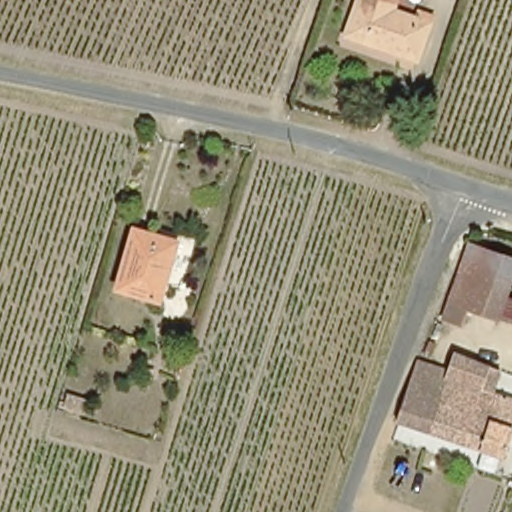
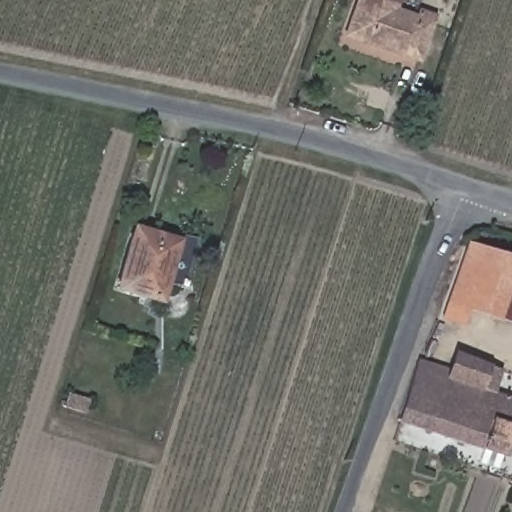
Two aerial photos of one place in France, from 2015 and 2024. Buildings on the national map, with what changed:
unchanged [(418,8),(436,15),(420,64),(342,38),(355,0),(401,0),(397,9),(416,15),(418,8)]
unchanged [(157,299),(115,287),(132,229),(175,242),(157,299)]
unchanged [(453,290),(452,289),(470,240),(512,256),(512,267),(498,307),(477,299),(468,324),(445,315),(453,290)]
unchanged [(453,347),(500,363),(492,386),(500,389),(490,416),(512,423),(512,434),(505,453),(395,416),(417,359),(446,367),(453,347)]

